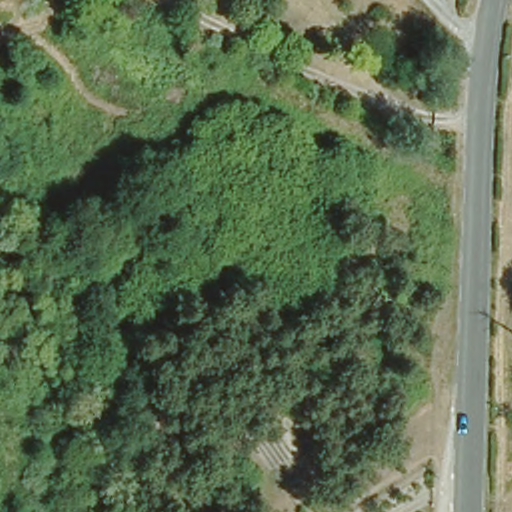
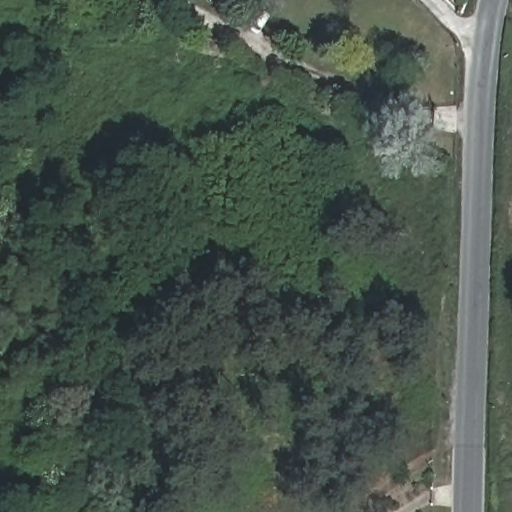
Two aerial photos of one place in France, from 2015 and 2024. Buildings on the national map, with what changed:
unchanged [(352,53),(344,61),(333,50),(337,46),(334,42),(339,37),(352,53)]

